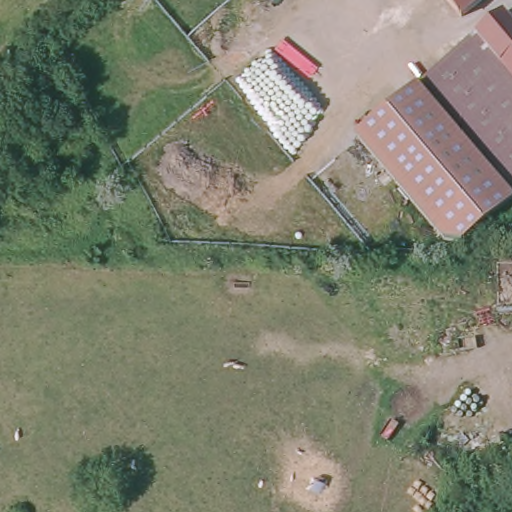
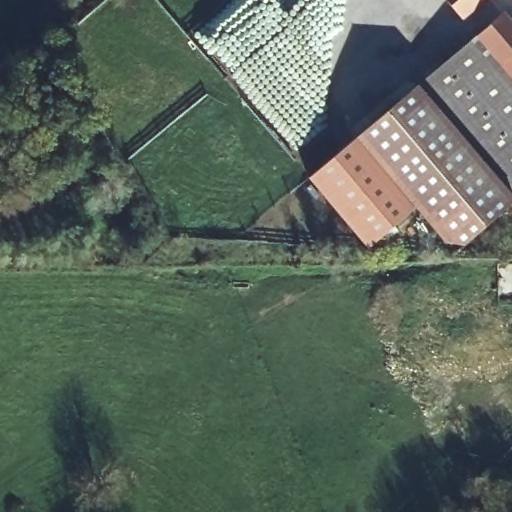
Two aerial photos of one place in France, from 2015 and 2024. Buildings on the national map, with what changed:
unchanged [(461,23),(442,0),(488,0),(461,23)]
unchanged [(358,139),(466,45),(479,33),(501,14),(512,27),(512,173),(512,174),(512,208),(458,255),(358,139)]
new [(415,206),(368,247),(308,177),(356,137),(358,139),(415,206)]
demolished [(458,255),(512,208),(512,220),(469,258),(464,262),(461,258),(458,255)]

